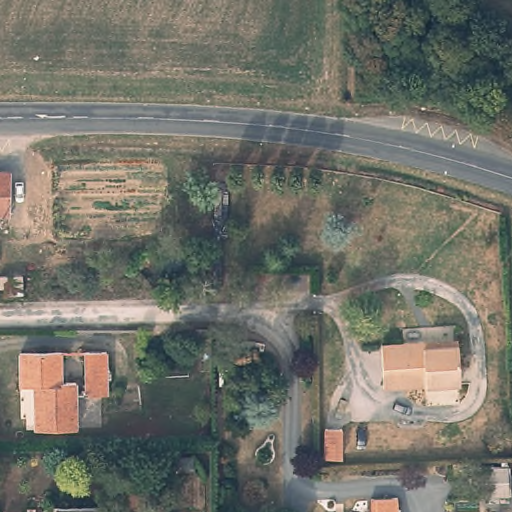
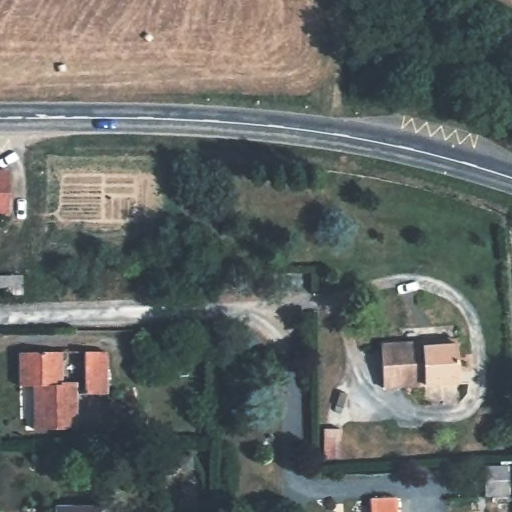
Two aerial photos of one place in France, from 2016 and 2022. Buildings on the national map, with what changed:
unchanged [(8,173),(7,215),(0,214),(0,172),(8,173)]
unchanged [(4,288),(4,277),(29,277),(29,288),(29,295),(11,296),(11,288),(4,288)]
unchanged [(379,387),(377,344),(420,341),(452,340),(452,346),(455,384),(379,387)]
unchanged [(87,395),(87,373),(86,353),(107,352),(108,372),(109,395),(87,395)]
unchanged [(77,382),(79,430),(37,431),(36,387),(21,387),(21,376),(21,354),(63,353),(64,374),(64,382),(77,382)]
unchanged [(483,481),(482,466),(512,464),(512,494),(486,495),(483,481)]
unchanged [(103,508),(103,512),(54,512),(54,507),(103,508)]
unchanged [(398,509),(398,512),(373,512),(372,512),(398,509)]

